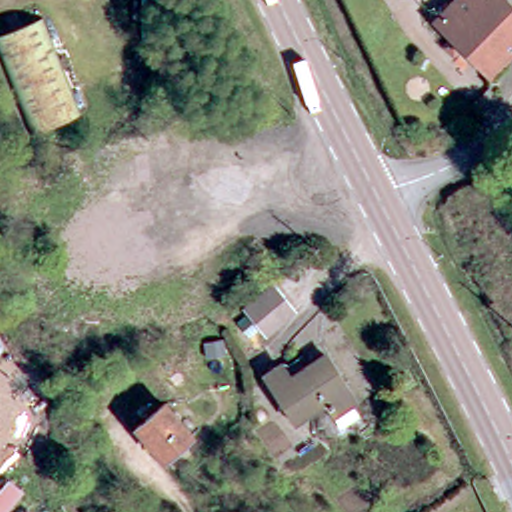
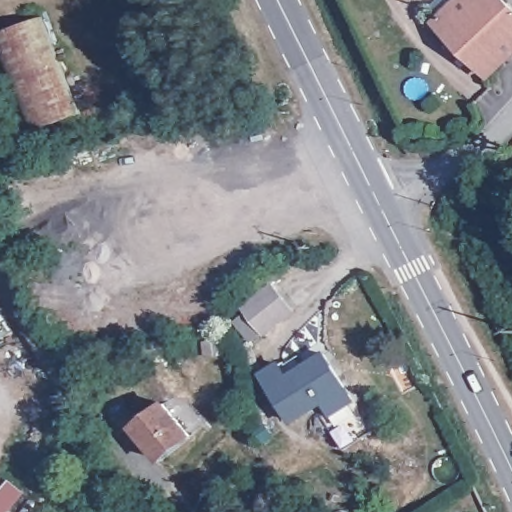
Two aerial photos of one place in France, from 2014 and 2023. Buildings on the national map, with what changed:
unchanged [(512,57),(490,78),(462,49),(455,57),(447,49),(444,46),(451,39),(436,22),(458,0),(502,0),(512,10),(512,57)]
unchanged [(0,66),(0,24),(45,14),(72,113),(17,126),(12,107),(0,66)]
unchanged [(270,283),(291,307),(264,331),(244,308),(270,283)]
unchanged [(327,418),(321,407),(314,395),(282,413),(255,369),(277,355),(279,358),(294,348),(300,358),(319,347),(345,392),(341,396),(347,407),(327,418)]
unchanged [(155,403),(183,433),(155,458),(128,428),(155,403)]
unchanged [(18,490),(1,512),(0,512),(0,485),(4,480),(18,490)]
unchanged [(112,507),(117,512),(108,512),(112,507)]

